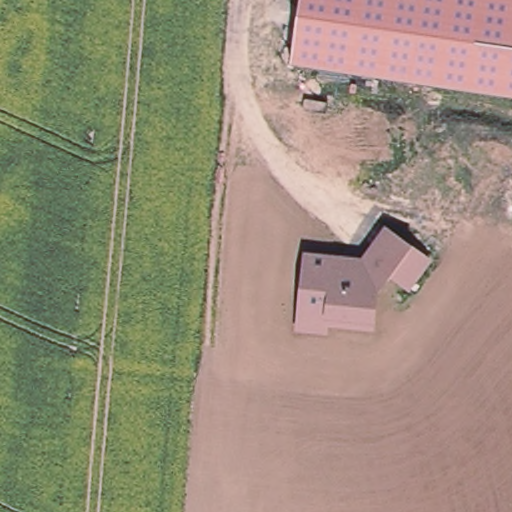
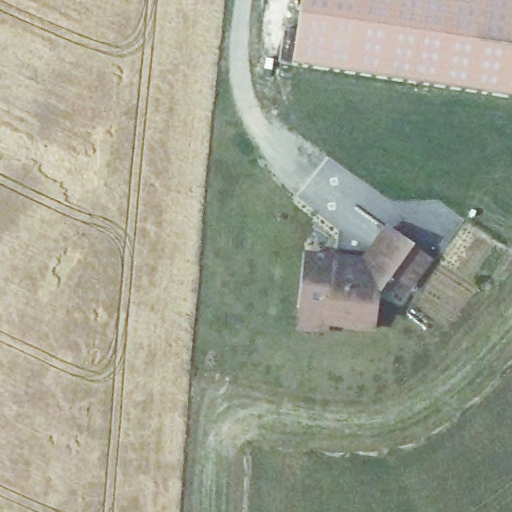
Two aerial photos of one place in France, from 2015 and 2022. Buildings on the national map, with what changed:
unchanged [(300,0),(512,0),(512,95),(292,62),(300,0)]
unchanged [(430,257),(407,287),(391,275),(377,295),(375,327),(326,321),(320,306),(300,303),(305,254),(368,260),(386,230),(430,257)]

